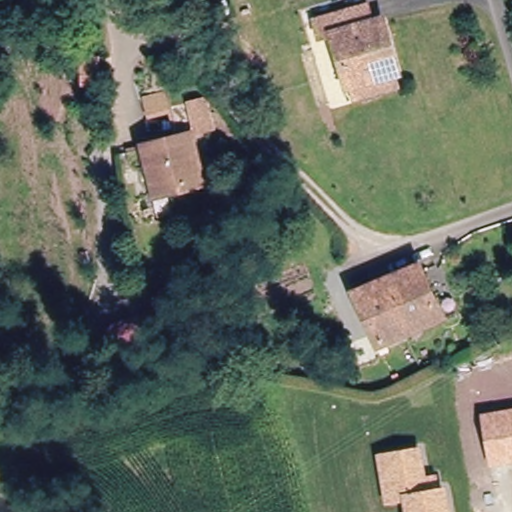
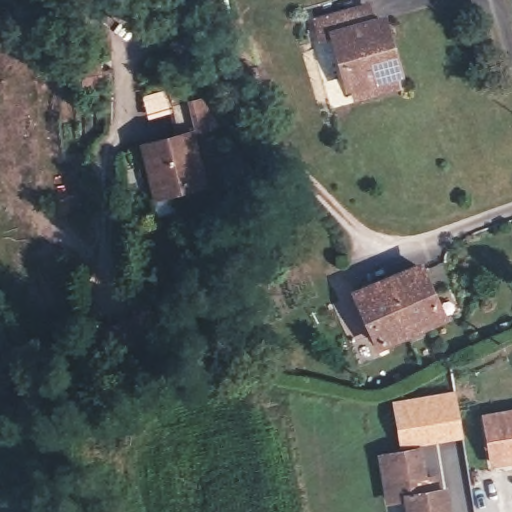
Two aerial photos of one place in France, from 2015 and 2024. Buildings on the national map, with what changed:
unchanged [(343,101),(339,88),(325,37),(313,41),(309,24),(355,11),(360,25),(374,21),(389,73),(393,86),(343,101)]
unchanged [(160,195),(146,143),(181,134),(175,110),(151,116),(146,94),(169,88),(173,105),(203,97),(211,127),(195,132),(208,182),(160,195)]
unchanged [(371,345),(350,295),(365,288),(419,266),(432,297),(439,317),(400,332),(371,345)]
new [(156,321),(144,327),(153,342),(125,358),(111,332),(105,336),(103,332),(149,306),(156,321)]
new [(399,447),(392,402),(455,391),(464,438),(399,447)]
unchanged [(512,408),(512,462),(490,465),(481,413),(512,408)]
unchanged [(421,446),(425,474),(435,472),(438,489),(446,488),(450,512),(405,512),(403,500),(385,503),(376,452),(421,446)]

